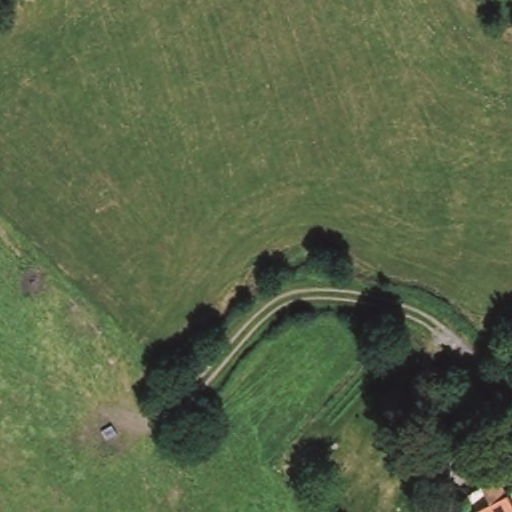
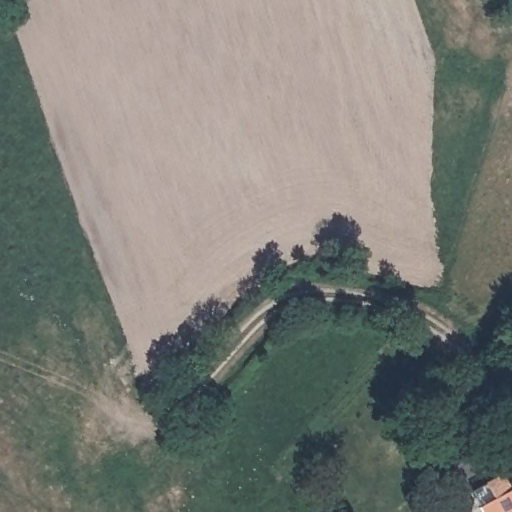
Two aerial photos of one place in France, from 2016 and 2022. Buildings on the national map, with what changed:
unchanged [(512,506),(512,507),(512,512),(474,512),(472,509),(465,494),(495,477),(511,504),(512,505),(512,506)]

